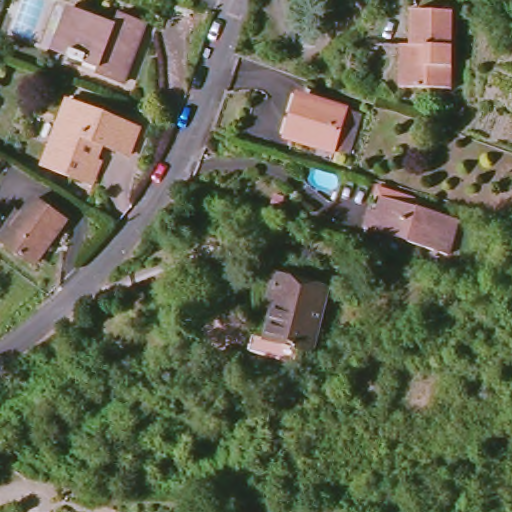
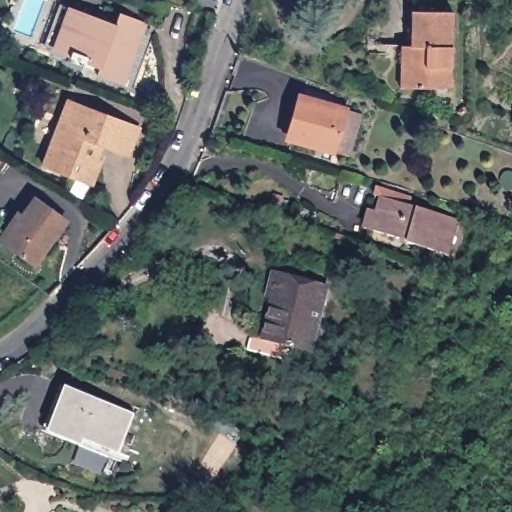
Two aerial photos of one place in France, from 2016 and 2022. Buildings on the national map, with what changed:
unchanged [(97,76),(102,64),(87,58),(85,63),(70,57),(71,52),(60,47),(75,9),(116,25),(120,14),(145,23),(124,86),(97,76)]
unchanged [(443,90),(400,89),(402,47),(412,47),(412,12),(454,13),(452,69),(452,90),(443,90)]
unchanged [(344,152),(330,148),(286,135),(298,93),(342,105),(356,109),(344,152)]
unchanged [(93,185),(82,182),(43,167),(69,102),(140,129),(129,156),(98,144),(91,159),(102,164),(93,185)]
unchanged [(4,174),(0,172),(0,157),(11,164),(4,174)]
unchanged [(410,243),(410,241),(365,229),(370,210),(368,209),(370,202),(375,203),(380,189),(395,194),(394,200),(458,220),(448,255),(410,243)]
unchanged [(4,243),(14,229),(35,199),(67,222),(46,251),(35,265),(4,243)]
unchanged [(248,347),(253,330),(267,333),(278,295),(270,294),(275,270),(328,285),(312,348),(298,344),(294,358),(248,347)]
new [(135,415),(120,453),(116,461),(80,448),(48,435),(48,433),(42,431),(60,385),(67,387),(135,415)]
unchanged [(167,512),(163,512),(163,511),(167,512)]

